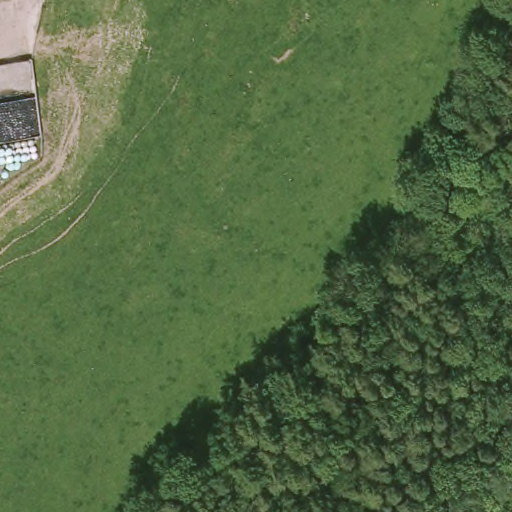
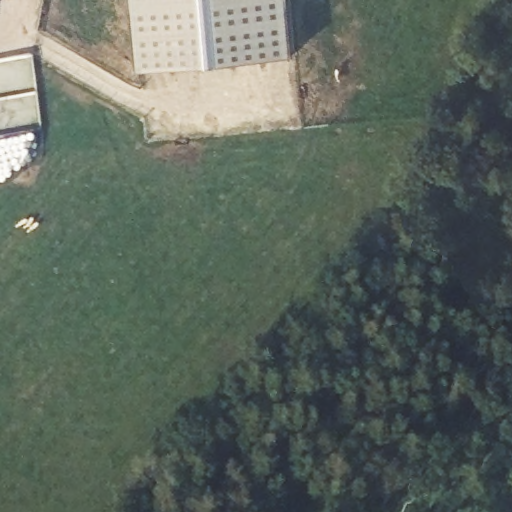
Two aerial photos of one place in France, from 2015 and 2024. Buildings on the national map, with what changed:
new [(139,69),(133,0),(289,0),(294,55),(139,69)]

